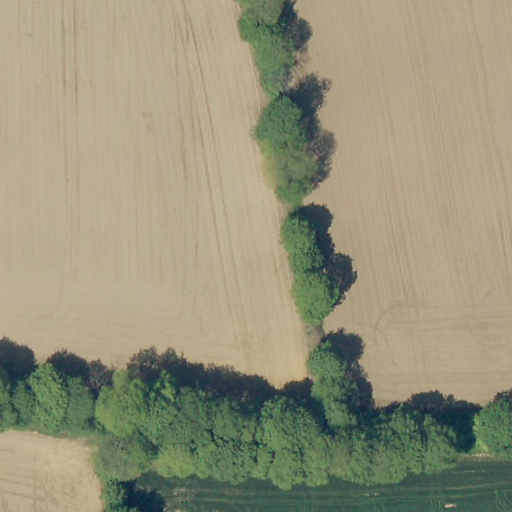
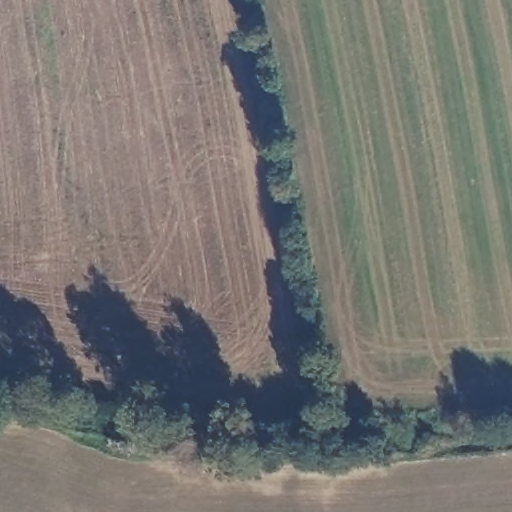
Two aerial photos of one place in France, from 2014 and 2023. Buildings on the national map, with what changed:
[]

